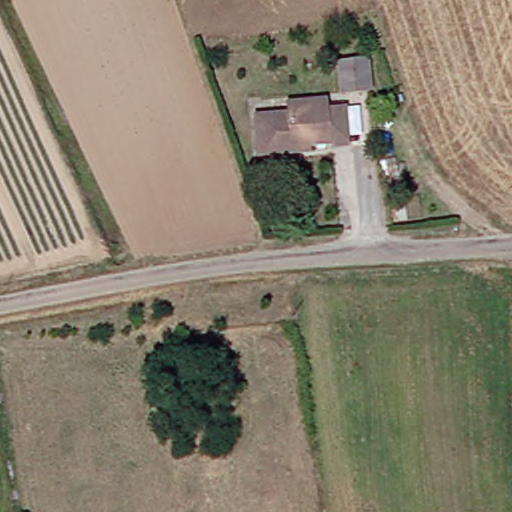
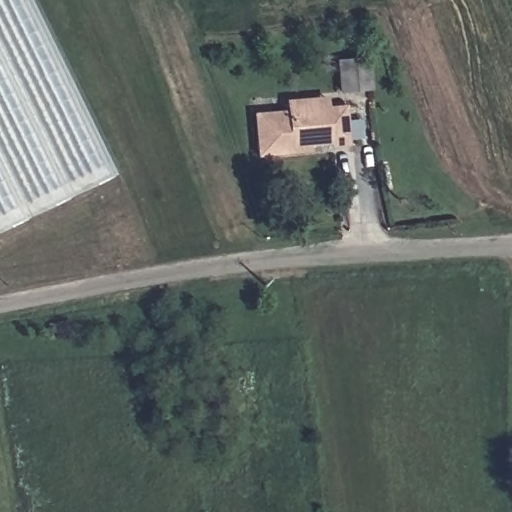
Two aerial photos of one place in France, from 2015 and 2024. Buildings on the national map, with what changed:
new [(0,232),(0,0),(35,0),(121,175),(0,232)]
unchanged [(337,93),(336,59),(361,58),(363,92),(337,93)]
unchanged [(250,116),(283,112),(282,102),(307,99),(307,105),(327,102),(328,107),(340,105),(343,141),(299,147),(299,153),(255,159),(250,116)]

